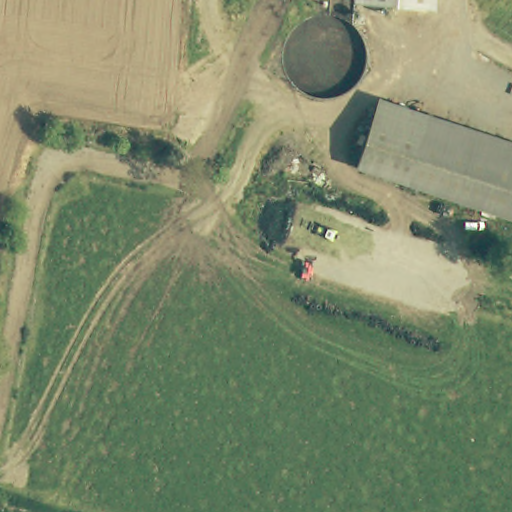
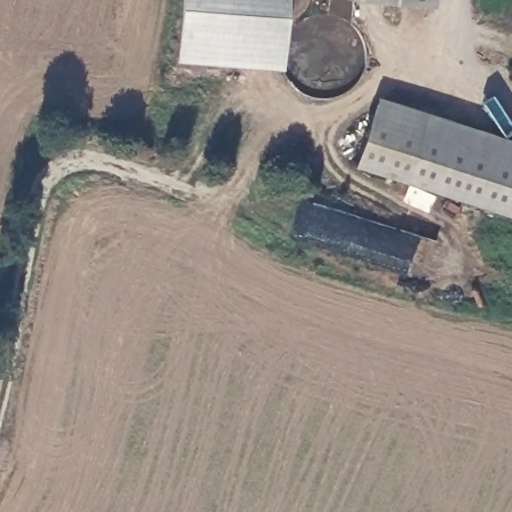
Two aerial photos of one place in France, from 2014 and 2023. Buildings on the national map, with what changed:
new [(179,0),(285,0),(281,71),(174,64),(179,0)]
unchanged [(432,8),(351,1),(351,0),(433,0),(432,8)]
unchanged [(512,161),(372,112),(378,94),(512,140),(512,161)]
unchanged [(512,218),(354,163),(372,112),(512,161),(512,218)]

